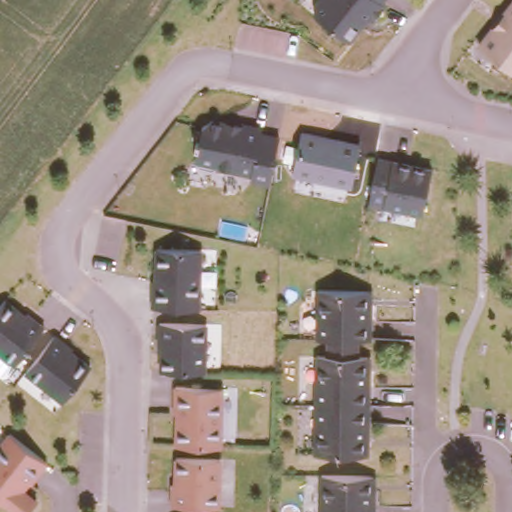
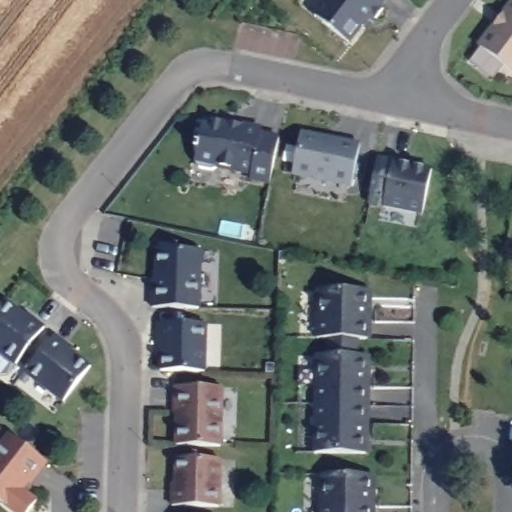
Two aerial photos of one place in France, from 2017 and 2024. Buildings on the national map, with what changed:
unchanged [(376,18),(369,15),(352,40),(311,11),(320,0),(388,0),(376,18)]
unchanged [(477,45),(511,0),(512,0),(512,72),(477,45)]
unchanged [(253,176),(253,174),(217,166),(217,168),(200,165),(209,115),(266,126),(265,130),(282,133),(272,180),(253,176)]
unchanged [(295,174),(305,127),(363,141),(352,187),(295,174)]
unchanged [(381,155),(432,166),(422,212),(372,201),(381,155)]
unchanged [(202,250),(200,308),(152,307),(155,249),(202,250)]
unchanged [(362,338),(362,348),(327,347),(327,336),(320,335),(320,290),(372,290),(372,338),(362,338)]
unchanged [(0,355),(0,304),(5,296),(43,327),(14,366),(0,355)]
unchanged [(210,323),(207,371),(157,370),(159,323),(210,323)]
unchanged [(91,364),(60,403),(22,373),(52,333),(91,364)]
unchanged [(315,451),(319,354),(373,355),(372,452),(315,451)]
unchanged [(225,387),(223,446),(172,445),(175,386),(225,387)]
unchanged [(37,499),(27,512),(10,512),(0,504),(0,440),(7,430),(46,460),(25,489),(37,499)]
unchanged [(224,458),(222,508),(173,506),(175,457),(224,458)]
unchanged [(378,475),(378,512),(323,512),(323,473),(378,475)]

